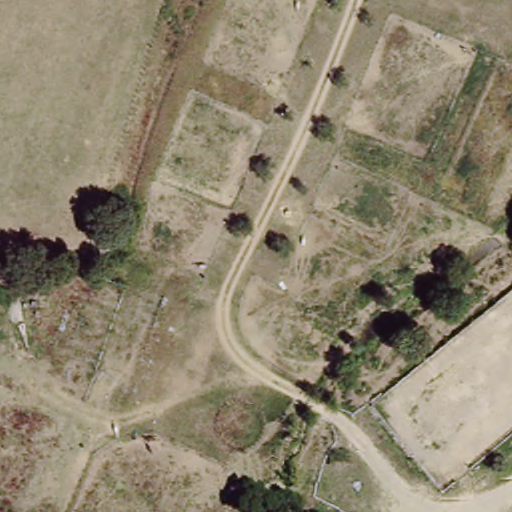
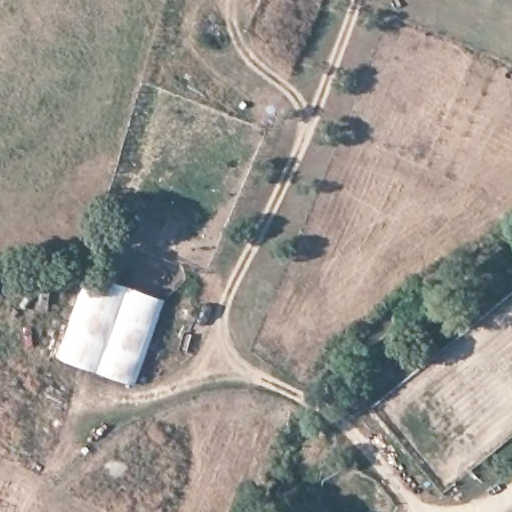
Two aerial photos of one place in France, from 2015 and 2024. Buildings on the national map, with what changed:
new [(58,357),(91,271),(166,298),(135,384),(58,357)]

